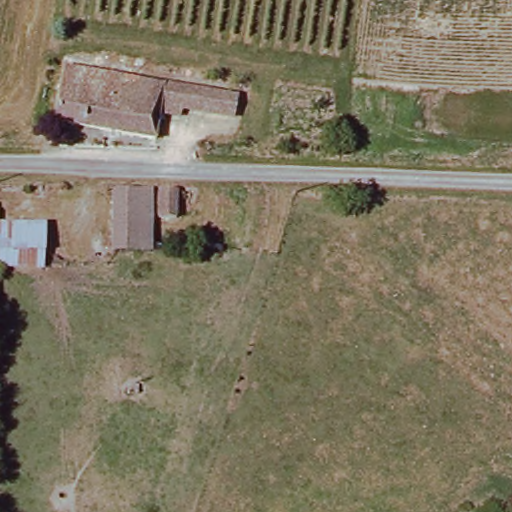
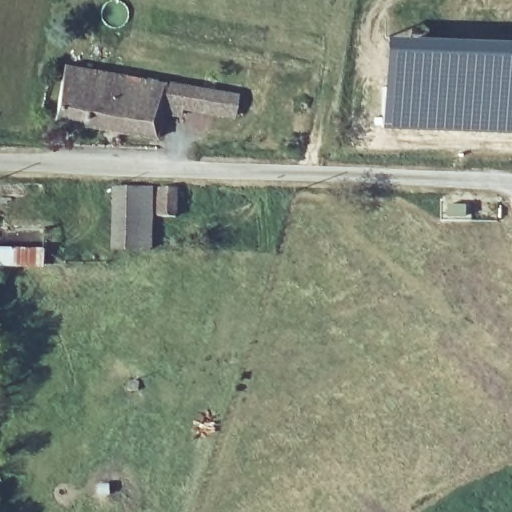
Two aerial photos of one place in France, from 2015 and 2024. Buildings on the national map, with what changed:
new [(380,128),(383,37),(512,42),(512,132),(380,128)]
unchanged [(177,109),(176,116),(153,113),(147,141),(46,126),(56,70),(231,94),(227,116),(177,109)]
demolished [(0,175),(35,175),(32,266),(0,265),(0,175)]
unchanged [(102,252),(105,191),(146,192),(144,254),(102,252)]
unchanged [(166,220),(153,219),(154,192),(172,193),(171,220),(166,220)]
new [(0,248),(15,248),(15,226),(45,227),(42,271),(0,269),(0,248)]

